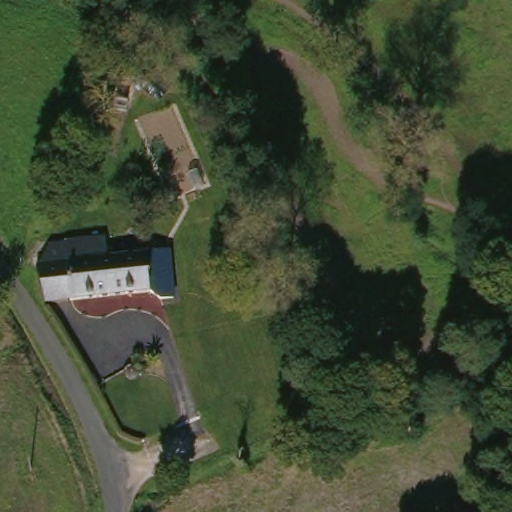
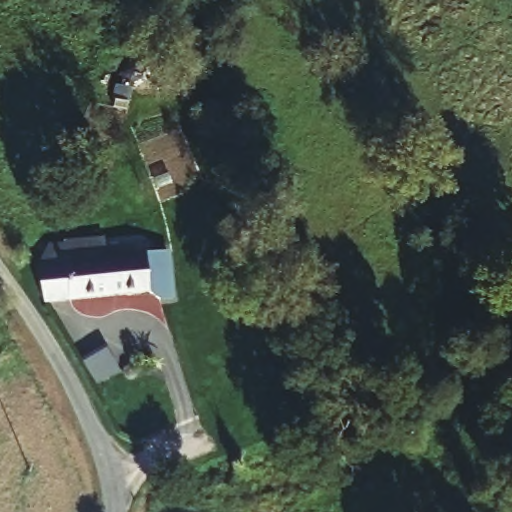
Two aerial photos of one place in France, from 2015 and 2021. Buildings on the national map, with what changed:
unchanged [(47,249),(65,248),(64,246),(104,245),(104,246),(105,267),(79,268),(40,268),(47,249)]
unchanged [(38,268),(40,268),(79,268),(105,267),(120,266),(129,265),(145,264),(146,296),(132,297),(52,301),(38,268)]

